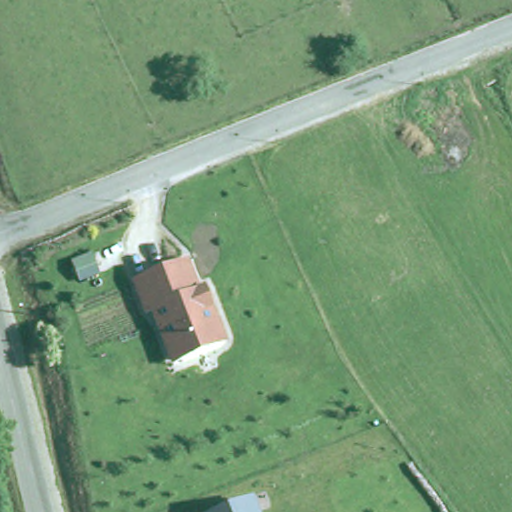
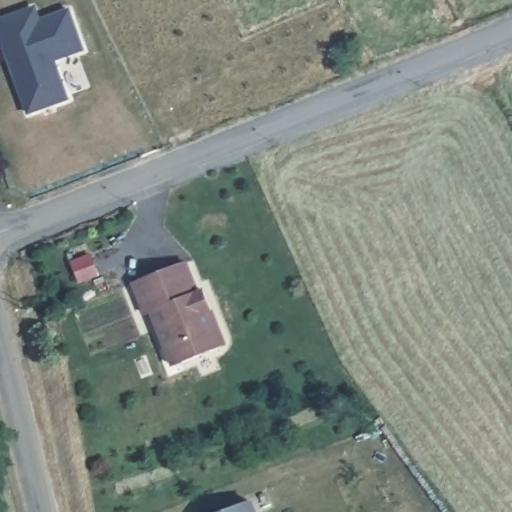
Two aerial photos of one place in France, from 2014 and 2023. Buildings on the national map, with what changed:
new [(27,8),(32,21),(68,8),(82,48),(53,58),(67,97),(27,110),(15,77),(17,76),(8,51),(6,52),(0,35),(0,18),(27,8)]
unchanged [(77,277),(70,258),(88,251),(95,270),(77,277)]
unchanged [(167,347),(161,329),(160,325),(154,311),(143,315),(132,284),(183,264),(195,294),(201,292),(207,305),(209,312),(217,331),(221,343),(218,349),(185,362),(175,366),(167,347)]
unchanged [(225,512),(252,500),(257,512),(225,512)]

